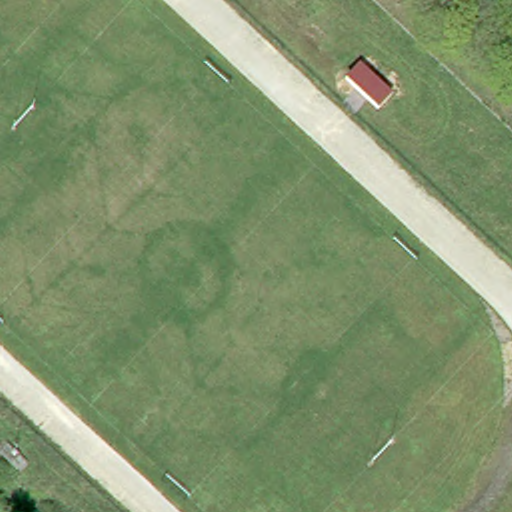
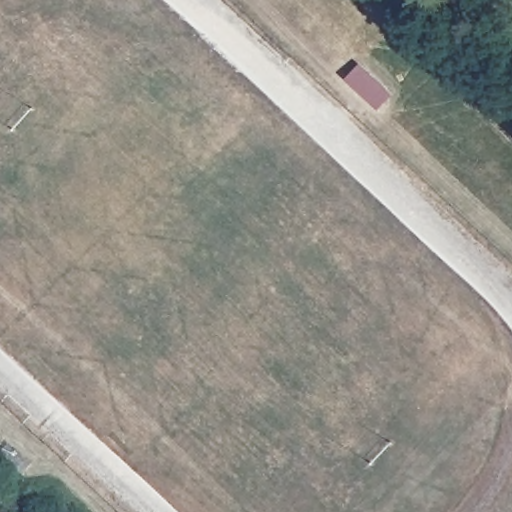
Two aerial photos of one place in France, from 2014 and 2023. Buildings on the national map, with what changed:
unchanged [(393,93),(380,109),(345,76),(360,61),(393,93)]

